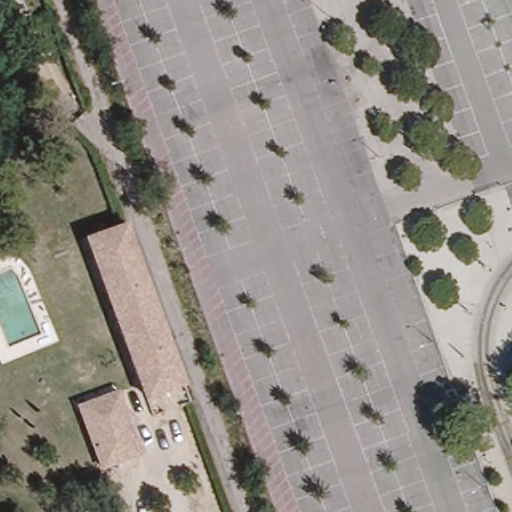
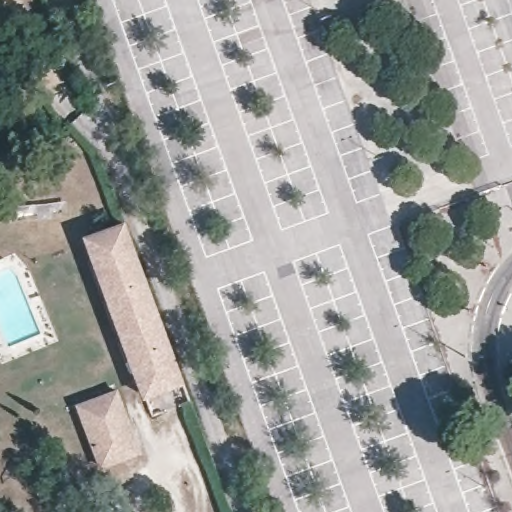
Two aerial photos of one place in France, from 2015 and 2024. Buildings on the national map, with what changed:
unchanged [(186,402),(155,412),(89,235),(126,221),(188,391),(191,400),(186,402)]
unchanged [(101,468),(76,404),(119,387),(143,453),(101,468)]

